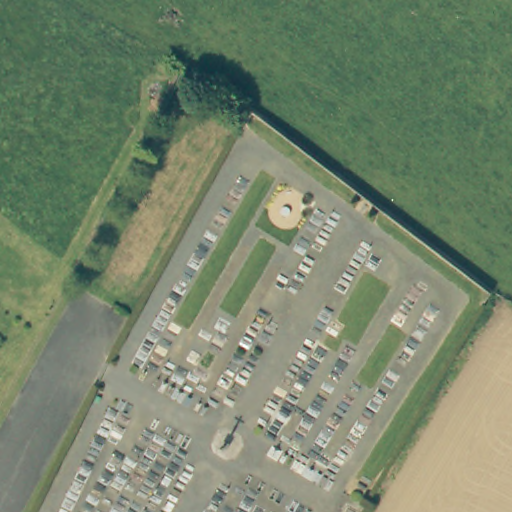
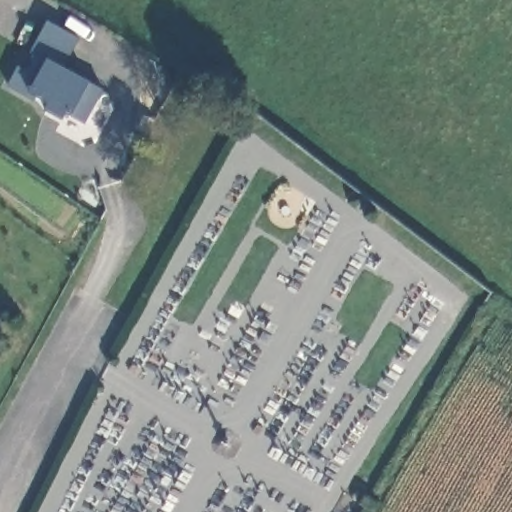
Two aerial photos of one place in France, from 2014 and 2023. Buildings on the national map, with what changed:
new [(80,37),(67,68),(89,81),(104,89),(85,123),(66,112),(63,119),(45,109),(47,104),(8,86),(19,66),(27,70),(36,54),(31,51),(48,20),(80,37)]

